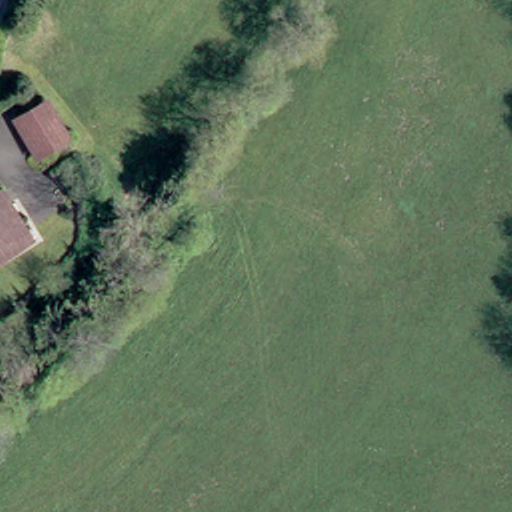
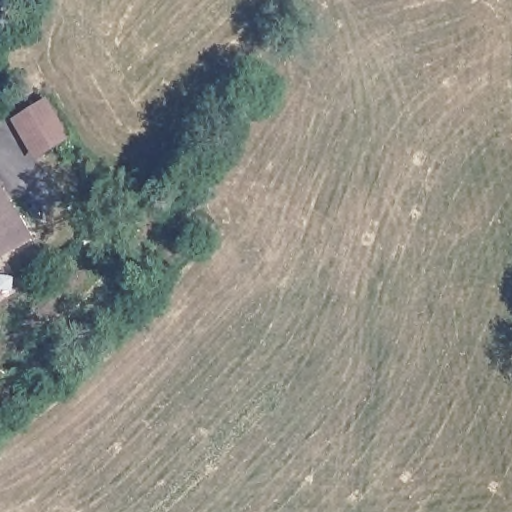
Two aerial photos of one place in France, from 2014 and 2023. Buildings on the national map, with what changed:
unchanged [(65,139),(38,157),(18,122),(45,105),(65,139)]
unchanged [(39,232),(0,257),(0,191),(9,184),(39,232)]

